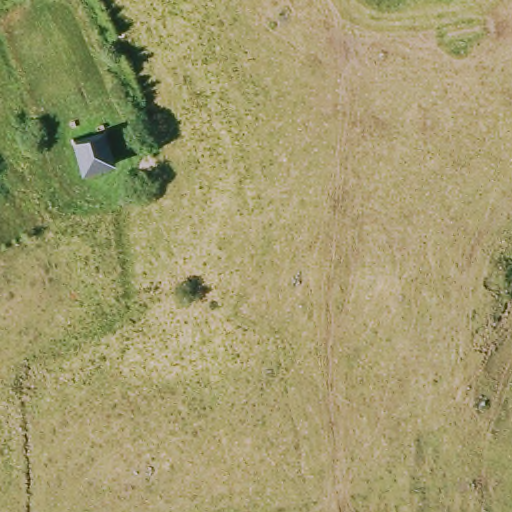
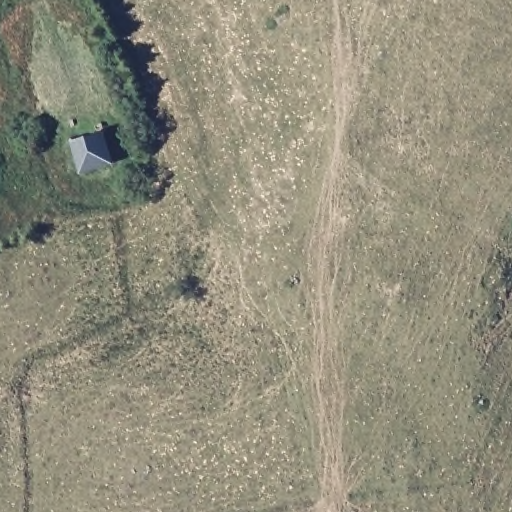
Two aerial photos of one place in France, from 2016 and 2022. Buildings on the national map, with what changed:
unchanged [(76,141),(109,128),(121,168),(86,174),(76,141)]

